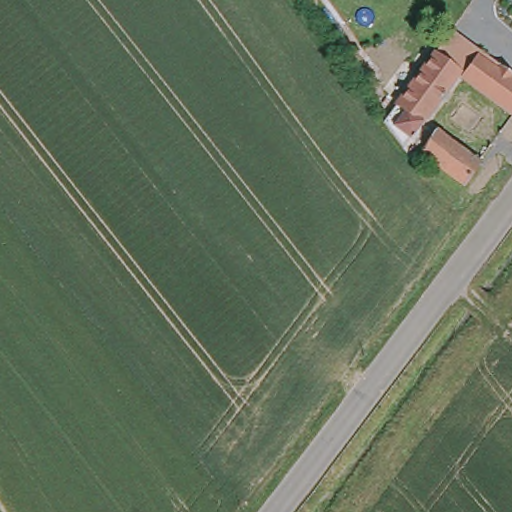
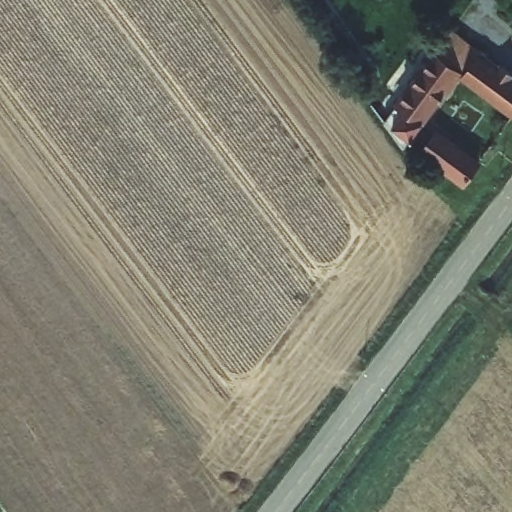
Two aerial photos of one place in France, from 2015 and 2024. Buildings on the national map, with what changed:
unchanged [(398,107),(438,49),(461,64),(473,46),(512,72),(512,113),(511,115),(459,82),(436,119),(484,152),(467,176),(412,140),(418,125),(398,107)]

